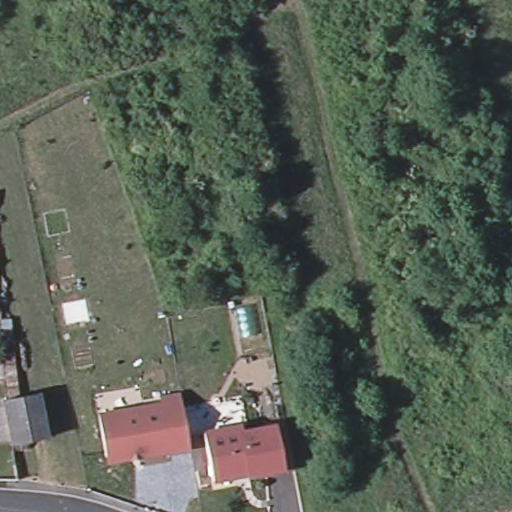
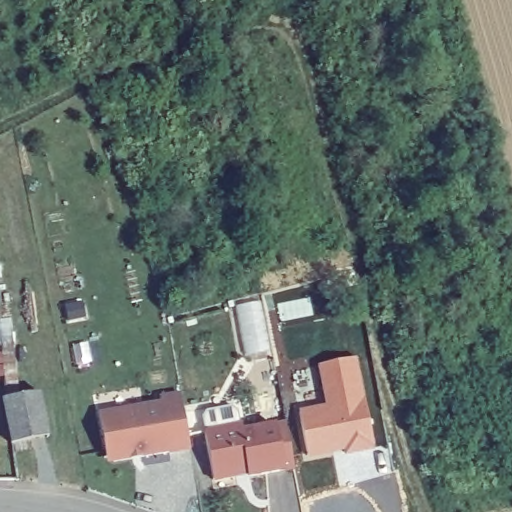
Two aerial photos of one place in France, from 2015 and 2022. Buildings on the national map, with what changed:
unchanged [(6,401),(0,316),(15,315),(19,396),(41,392),(51,438),(14,444),(6,401)]
new [(358,357),(377,448),(346,454),(346,452),(308,458),(301,409),(327,404),(319,364),(358,357)]
unchanged [(182,413),(188,450),(168,453),(168,451),(141,456),(140,450),(125,452),(120,459),(111,461),(104,456),(97,413),(160,403),(159,397),(179,394),(182,413)]
unchanged [(296,469),(270,473),(251,477),(250,469),(241,471),(238,476),(215,480),(207,433),(243,426),(245,432),(263,429),(289,424),(296,469)]

